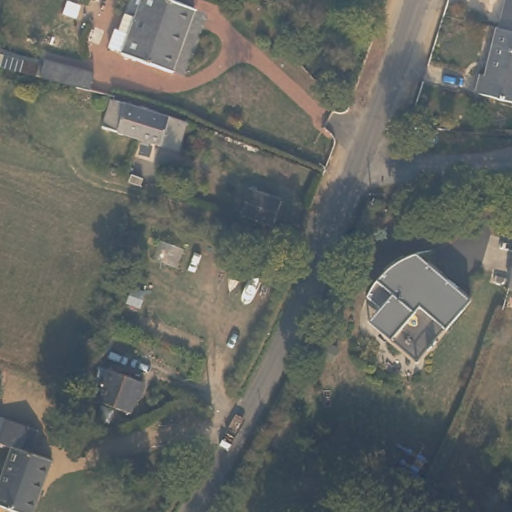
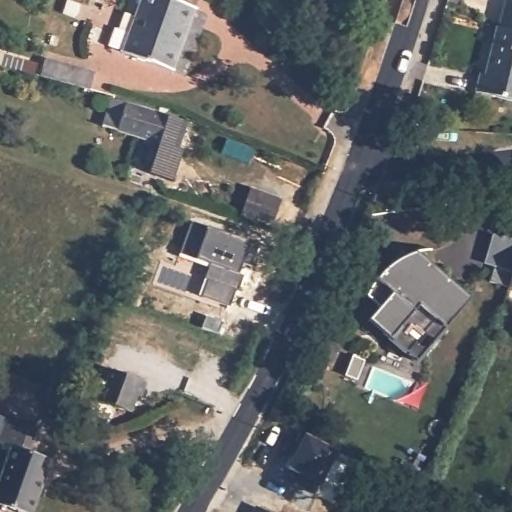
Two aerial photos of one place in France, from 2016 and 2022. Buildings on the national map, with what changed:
unchanged [(129,32),(118,29),(125,10),(135,14),(140,0),(185,0),(193,2),(173,66),(123,51),(129,32)]
unchanged [(481,70),(485,70),(494,24),(498,25),(503,0),(512,0),(512,95),(476,89),(481,70)]
unchanged [(41,61),(91,74),(87,92),(38,78),(41,61)]
unchanged [(105,125),(115,97),(148,109),(139,136),(105,125)]
unchanged [(148,109),(186,120),(179,150),(139,136),(148,109)]
unchanged [(275,217),(243,206),(245,200),(251,200),(254,191),(281,200),(275,217)]
unchanged [(381,306),(369,295),(376,281),(385,270),(396,261),(411,253),(417,251),(439,270),(473,297),(437,340),(439,341),(439,343),(435,347),(431,346),(419,360),(411,354),(392,337),(370,320),(381,306)]
unchanged [(512,281),(510,280),(512,274),(512,281)]
unchanged [(145,380),(139,396),(134,395),(129,409),(90,393),(102,364),(145,380)]
unchanged [(19,374),(0,421),(0,366),(19,374)]
unchanged [(14,448),(6,445),(0,443),(0,433),(5,416),(41,428),(33,454),(14,448)]
new [(316,494),(294,482),(300,472),(288,467),(297,450),(293,448),(302,430),(339,450),(316,494)]
unchanged [(33,512),(21,512),(0,505),(0,488),(14,448),(50,462),(33,512)]
new [(268,512),(254,512),(257,506),(268,512)]

